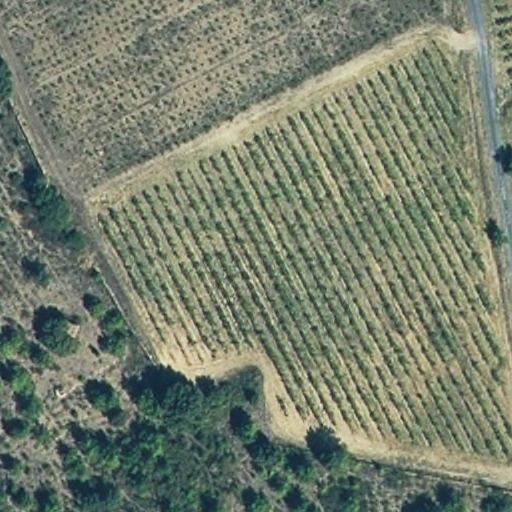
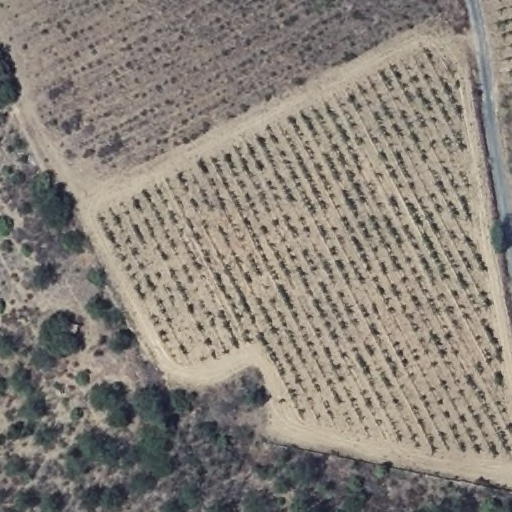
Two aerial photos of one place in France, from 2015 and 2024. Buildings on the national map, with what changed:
unchanged [(80,325),(75,341),(61,336),(66,317),(80,325)]

